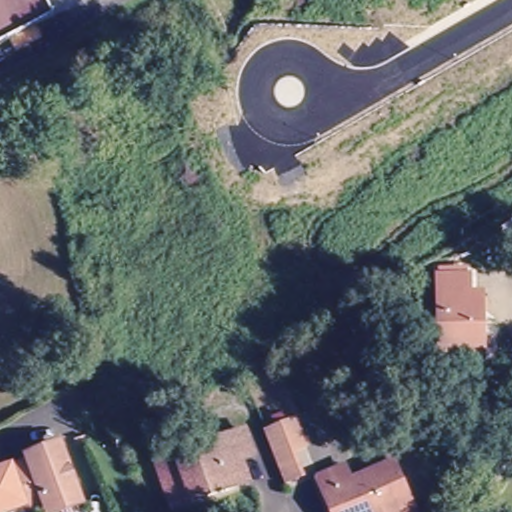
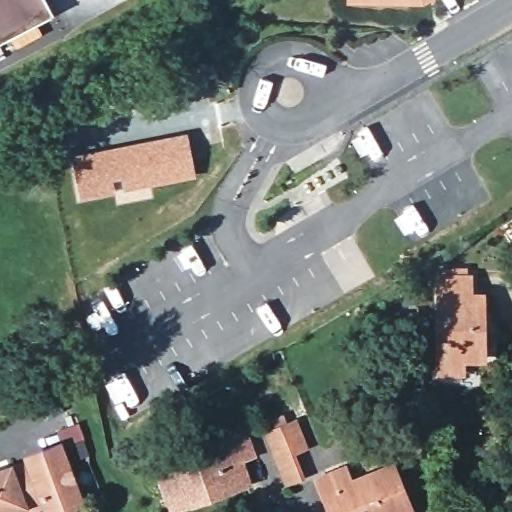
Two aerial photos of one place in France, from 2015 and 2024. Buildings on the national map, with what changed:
unchanged [(0,43),(0,0),(45,0),(54,16),(0,43)]
new [(347,2),(347,0),(428,0),(423,3),(347,2)]
new [(189,131),(198,176),(121,191),(81,200),(72,153),(189,131)]
unchanged [(437,376),(436,353),(435,272),(463,271),(464,291),(476,291),(478,353),(457,353),(458,376),(437,376)]
unchanged [(287,485),(266,430),(300,418),(311,448),(298,452),(306,478),(287,485)]
unchanged [(168,499),(156,465),(233,438),(249,482),(192,502),(172,509),(168,499)]
unchanged [(72,512),(42,512),(41,509),(32,512),(19,512),(19,510),(16,504),(6,474),(25,467),(23,463),(54,451),(74,504),(76,511),(72,512)]
unchanged [(325,493),(319,478),(345,467),(351,482),(393,464),(413,512),(333,512),(325,493)]
unchanged [(19,510),(13,512),(0,512),(0,476),(6,474),(16,504),(19,510)]

